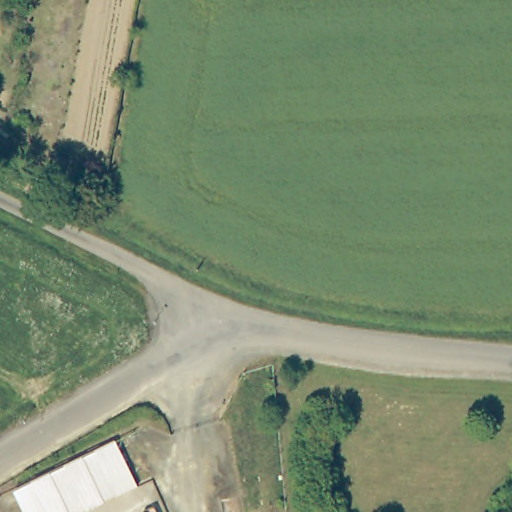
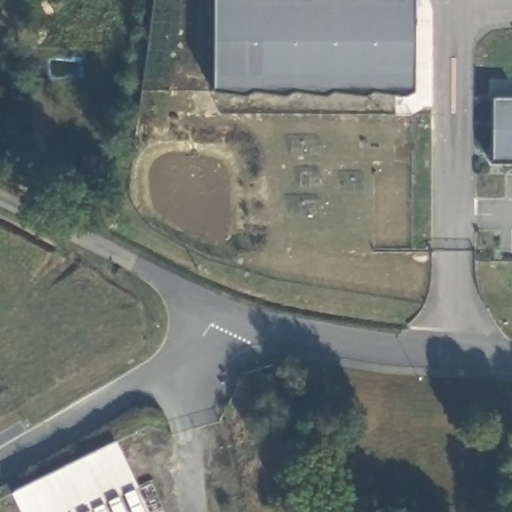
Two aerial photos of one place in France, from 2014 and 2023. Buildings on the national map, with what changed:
unchanged [(0,3),(0,0),(9,0),(9,4),(0,3)]
new [(410,90),(402,94),(376,91),(365,95),(337,91),(326,94),(296,89),(286,95),(253,90),(247,93),(214,90),(215,0),(415,0),(410,90)]
new [(493,161),(493,99),(512,99),(512,161),(493,161)]
unchanged [(86,210),(56,205),(57,195),(88,199),(86,210)]
unchanged [(140,486),(88,512),(26,512),(16,492),(117,441),(140,486)]

